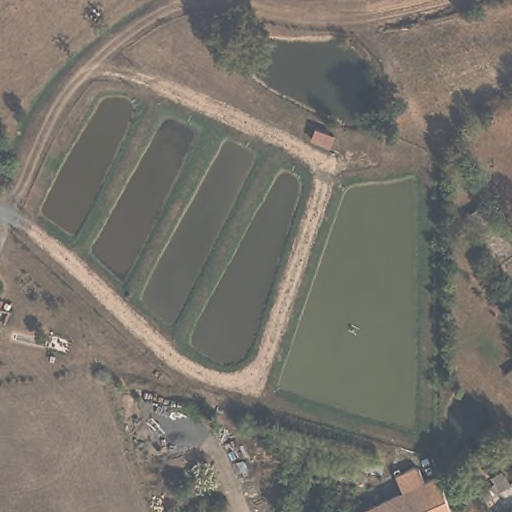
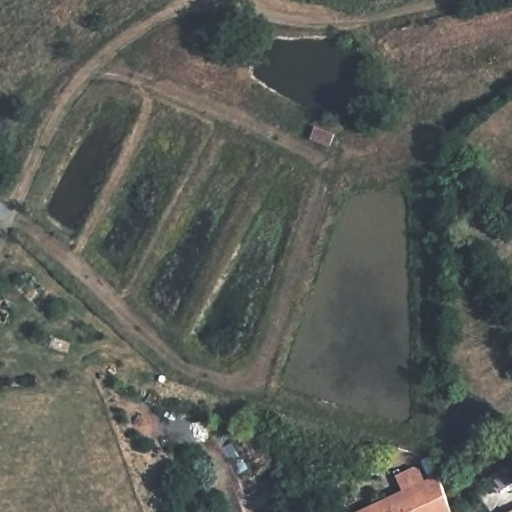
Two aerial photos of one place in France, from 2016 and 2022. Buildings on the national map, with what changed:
unchanged [(403,491),(396,476),(410,469),(418,471),(423,481),(437,475),(449,512),(361,512),(403,491)]

